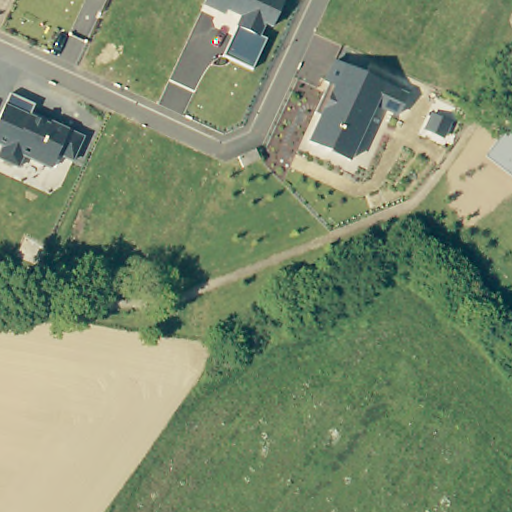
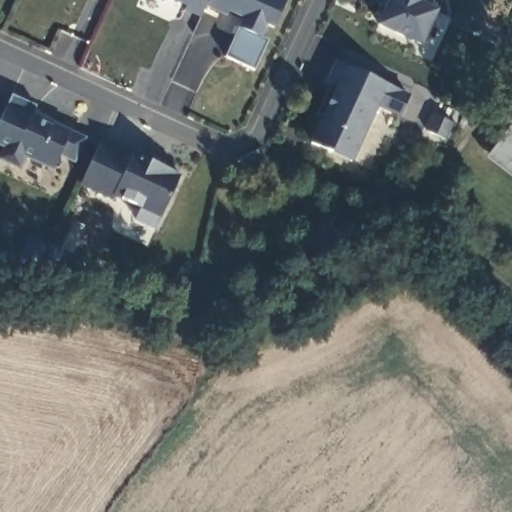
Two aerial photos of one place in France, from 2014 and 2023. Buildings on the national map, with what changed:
unchanged [(285,0),(272,29),(266,26),(262,38),(267,40),(254,69),(226,56),(239,27),(237,27),(242,17),(228,11),(225,15),(204,5),(206,0),(285,0)]
new [(437,0),(432,9),(437,11),(421,46),(377,25),(387,0),(437,0)]
unchanged [(332,151),(311,142),(323,116),(317,113),(331,83),(327,81),(337,61),(409,95),(400,115),(377,105),(353,156),(351,161),(332,151)]
unchanged [(36,106),(31,116),(51,124),(52,121),(71,130),(86,137),(73,163),(58,157),(51,171),(24,159),(19,169),(0,160),(0,155),(4,149),(0,147),(0,119),(12,95),(36,106)]
unchanged [(487,157),(512,126),(512,178),(487,157)]
new [(101,142),(131,156),(132,151),(151,161),(181,174),(156,230),(134,220),(141,208),(121,198),(119,200),(112,196),(111,199),(80,186),(80,185),(101,142)]

